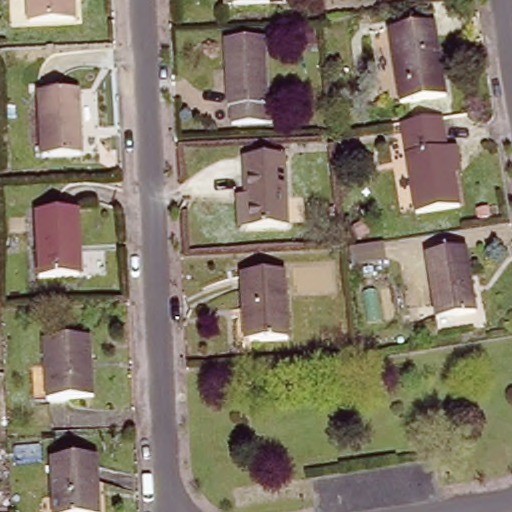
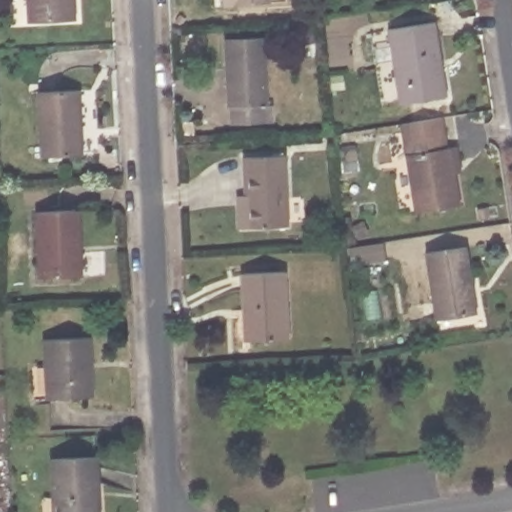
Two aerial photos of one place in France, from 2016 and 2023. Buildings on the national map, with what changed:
unchanged [(72,17),(30,19),(28,0),(71,0),(72,17)]
unchanged [(402,100),(391,27),(437,20),(448,93),(402,100)]
unchanged [(270,119),(238,121),(237,101),(235,101),(230,35),(268,33),(272,99),(268,99),(270,119)]
unchanged [(43,157),(40,91),(78,89),(82,155),(43,157)]
unchanged [(450,152),(453,152),(462,150),(467,176),(458,178),(463,209),(420,217),(405,129),(445,123),(450,152)]
unchanged [(348,165),(340,166),(338,157),(346,155),(348,165)]
unchanged [(243,197),(251,197),(248,160),(289,157),(293,226),(253,228),(245,229),(243,197)]
unchanged [(80,242),(81,272),(43,274),(40,208),(82,206),(84,242),(80,242)]
unchanged [(329,236),(337,234),(340,249),(332,249),(329,236)]
unchanged [(438,317),(430,251),(468,246),(477,312),(438,317)]
unchanged [(243,274),(288,271),(292,338),(254,340),(252,310),(245,311),(243,274)]
unchanged [(93,360),(94,368),(97,368),(98,394),(55,397),(52,337),(95,335),(97,360),(93,360)]
unchanged [(96,456),(99,512),(56,512),(53,458),(96,456)]

